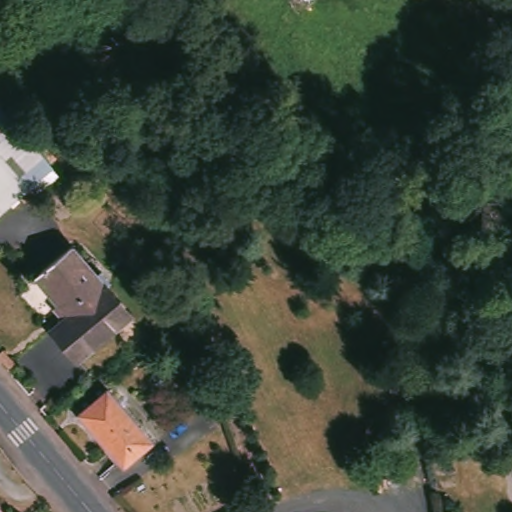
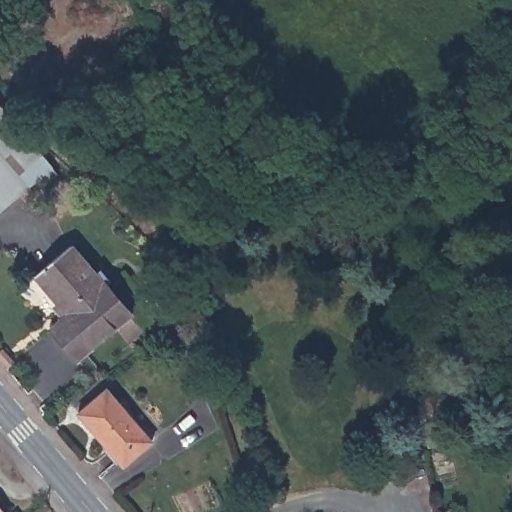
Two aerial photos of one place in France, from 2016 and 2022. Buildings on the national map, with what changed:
unchanged [(0,97),(4,95),(61,164),(0,215),(0,97)]
unchanged [(75,244),(134,313),(83,356),(56,326),(72,312),(40,273),(75,244)]
unchanged [(200,361),(207,375),(197,380),(189,367),(200,361)]
unchanged [(107,387),(154,441),(125,466),(79,411),(107,387)]
unchanged [(8,512),(0,512),(0,503),(8,512)]

